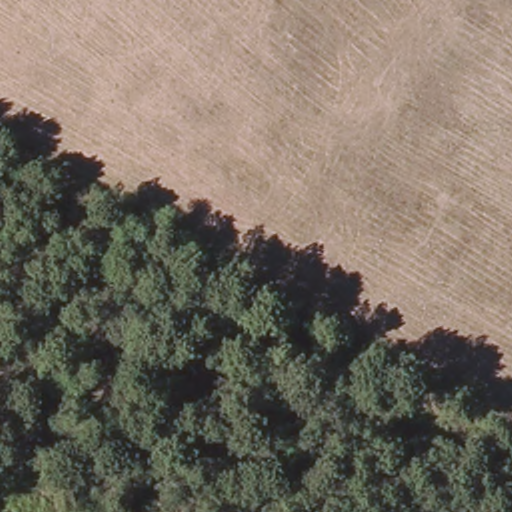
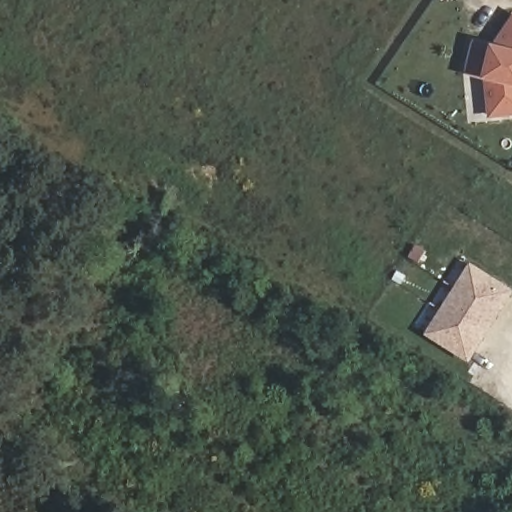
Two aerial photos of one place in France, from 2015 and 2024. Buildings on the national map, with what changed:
new [(489,120),(485,80),(466,76),(474,39),(493,44),(512,17),(512,117),(489,120)]
new [(473,266),(512,290),(512,291),(471,358),(431,334),(473,266)]

